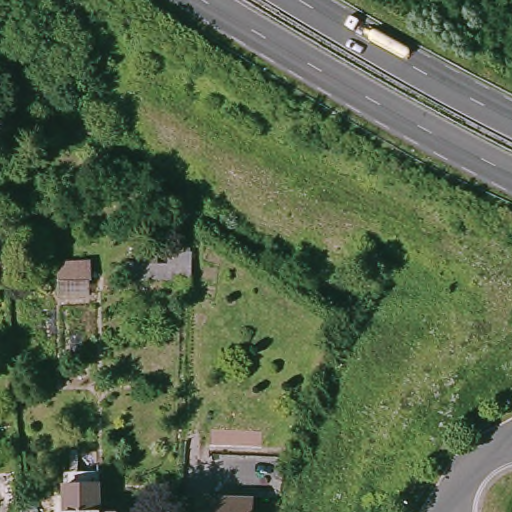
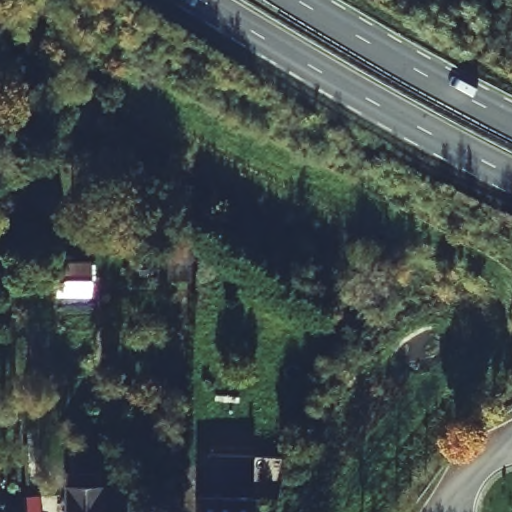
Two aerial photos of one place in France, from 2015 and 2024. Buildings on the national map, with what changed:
unchanged [(192,281),(120,280),(120,263),(125,263),(125,254),(160,254),(160,262),(170,263),(170,251),(194,251),(192,281)]
unchanged [(92,280),(92,296),(60,295),(60,280),(92,280)]
unchanged [(97,492),(97,512),(61,512),(61,492),(97,492)]
unchanged [(252,498),(252,512),(200,512),(200,496),(252,498)]
unchanged [(25,511),(25,512),(19,512),(19,511),(25,511)]

